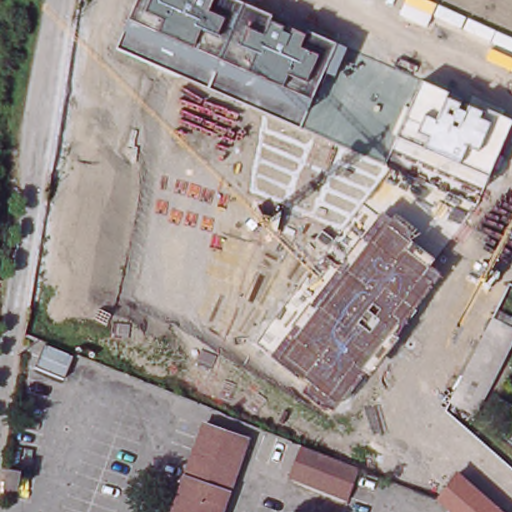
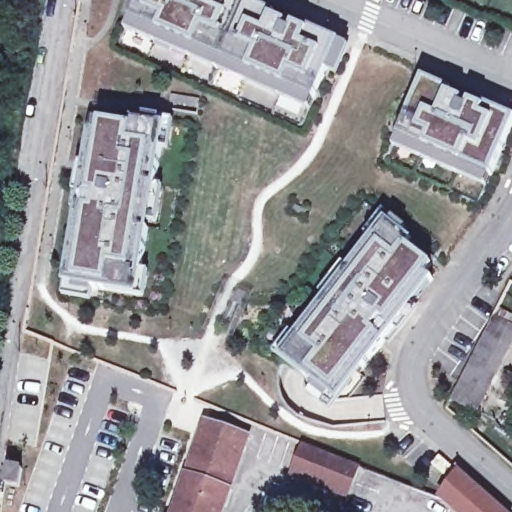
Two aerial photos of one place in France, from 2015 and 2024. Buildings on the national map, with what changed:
unchanged [(272,21),(308,37),(310,32),(347,48),(335,76),(325,71),(305,110),(123,31),(137,0),(235,0),(272,15),(272,21)]
unchanged [(448,92),(447,96),(482,111),(485,108),(512,119),(483,189),(391,153),(422,82),(448,92)]
new [(88,130),(95,131),(97,122),(133,127),(135,123),(160,127),(165,129),(136,294),(63,284),(88,130)]
demolished [(109,178),(157,187),(148,235),(155,236),(150,262),(97,253),(109,178)]
unchanged [(289,331),(295,335),(320,302),(324,305),(330,297),(321,291),(338,267),(342,263),(347,267),(370,236),(365,232),(368,228),(379,216),(387,222),(388,221),(385,219),(388,215),(402,226),(399,229),(412,239),(407,245),(432,264),(425,272),(432,278),(415,297),(412,304),(403,298),(393,311),(401,317),(363,368),(355,378),(348,372),(330,395),(303,375),(307,370),(286,354),(283,358),(275,352),(279,346),(286,335),(289,331)]
unchanged [(512,319),(512,343),(476,415),(450,402),(497,311),(512,319)]
unchanged [(207,419),(250,435),(223,512),(175,512),(207,419)]
unchanged [(350,499),(292,474),(304,445),(362,468),(350,499)]
unchanged [(23,471),(20,486),(7,484),(10,468),(23,471)]
unchanged [(440,500),(435,495),(452,469),(502,512),(455,512),(440,500)]

